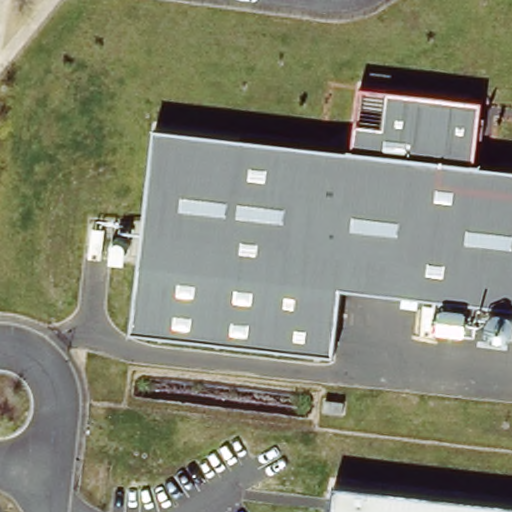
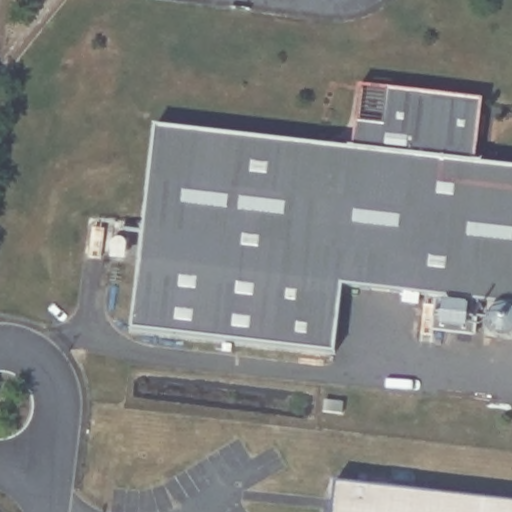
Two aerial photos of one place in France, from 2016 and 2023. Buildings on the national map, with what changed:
unchanged [(132,330),(155,126),(350,149),(360,85),(481,100),(474,164),(512,168),(512,334),(511,336),(503,337),(493,335),(489,331),(487,325),(488,316),(489,308),(490,301),(468,297),(468,303),(466,327),(440,324),(442,303),(442,296),(340,285),(334,353),(132,330)]
unchanged [(331,512),(334,485),(512,505),(512,512),(331,512)]

